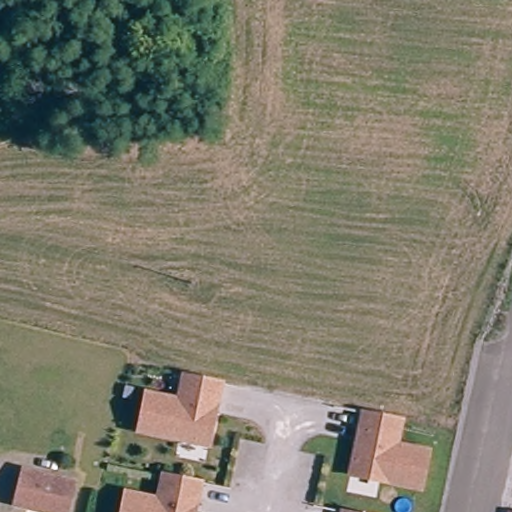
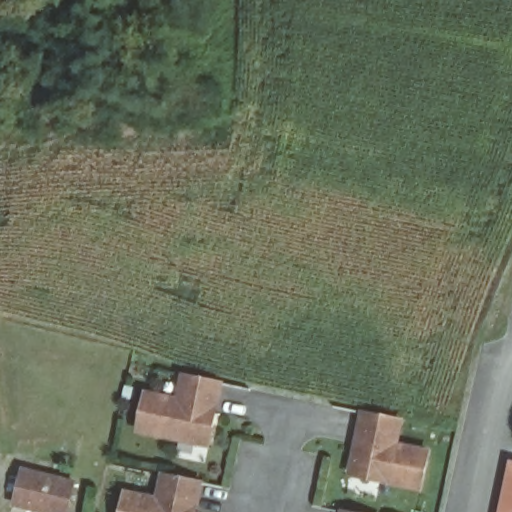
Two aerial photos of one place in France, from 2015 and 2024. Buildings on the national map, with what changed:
unchanged [(201,446),(141,434),(149,396),(186,404),(191,380),(224,386),(213,437),(211,448),(201,446)]
unchanged [(355,461),(365,411),(398,417),(393,442),(430,450),(422,487),(362,475),(353,473),(355,461)]
new [(511,460),(512,460),(512,512),(500,512),(511,460)]
unchanged [(77,481),(70,512),(54,512),(17,503),(25,469),(77,481)]
unchanged [(128,491),(166,498),(171,474),(203,481),(197,512),(124,512),(128,491)]

